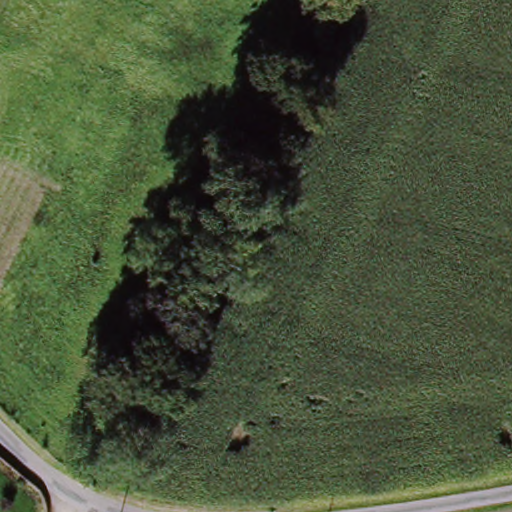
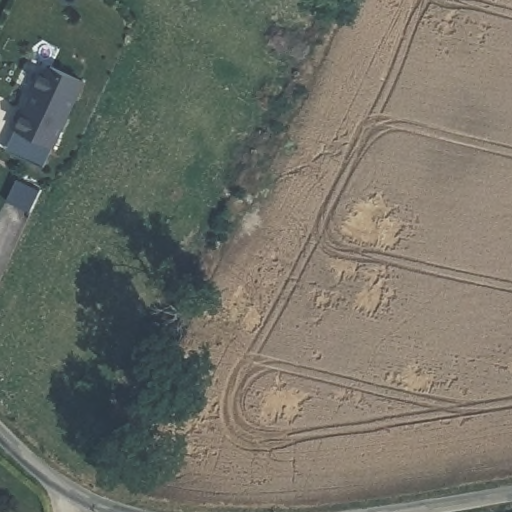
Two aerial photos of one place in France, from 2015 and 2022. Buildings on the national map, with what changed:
new [(20,106),(25,108),(31,94),(33,95),(37,86),(35,85),(44,66),(51,63),(83,78),(53,142),(12,123),(20,106)]

